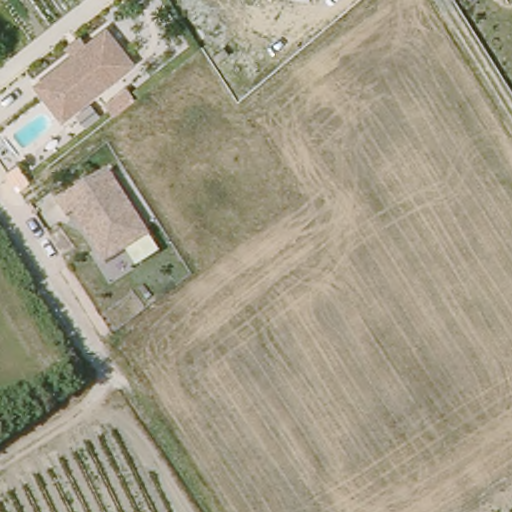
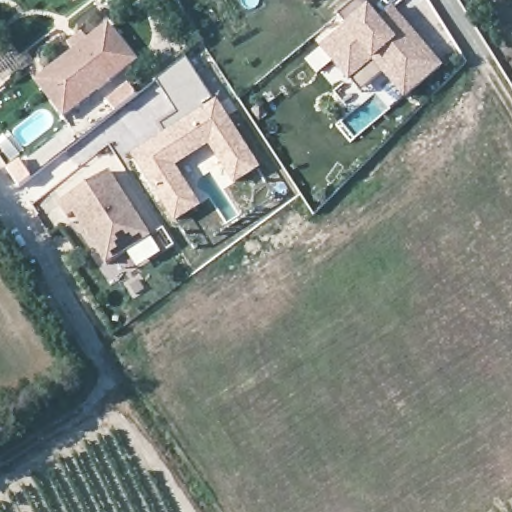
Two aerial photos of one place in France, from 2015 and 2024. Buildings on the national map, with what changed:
new [(374,60),(349,80),(323,47),(348,27),(338,15),(356,0),(364,0),(381,20),(387,14),(399,27),(404,23),(442,68),(405,98),(374,60)]
unchanged [(138,57),(63,119),(33,82),(107,27),(138,57)]
new [(186,58),(213,99),(182,120),(157,80),(186,58)]
new [(176,123),(182,120),(213,99),(216,97),(261,167),(233,186),(208,146),(176,167),(201,205),(173,224),(128,156),(176,123)]
unchanged [(152,232),(108,264),(75,217),(68,222),(58,205),(110,170),(152,232)]

